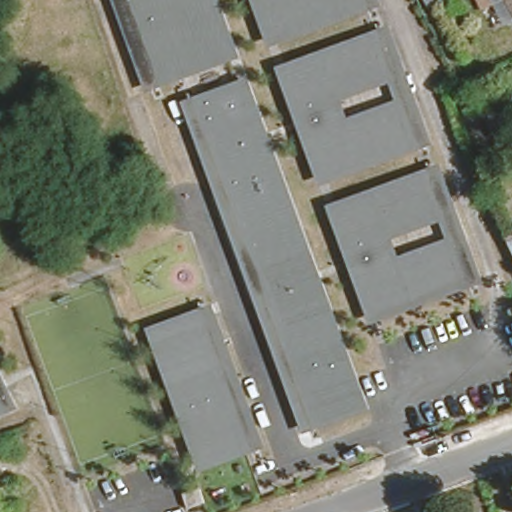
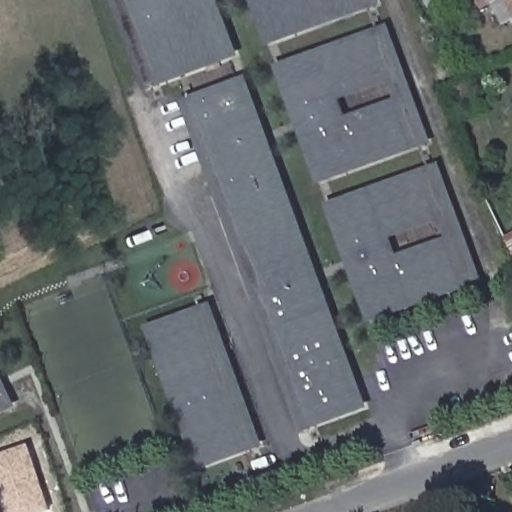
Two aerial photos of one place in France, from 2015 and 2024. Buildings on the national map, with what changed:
unchanged [(215,58),(153,81),(121,0),(211,0),(231,51),(215,58)]
unchanged [(377,0),(378,3),(377,4),(282,40),(267,0),(377,0)]
unchanged [(501,23),(493,7),(483,12),(476,0),(512,0),(512,17),(501,23)]
unchanged [(295,72),(390,36),(431,143),(335,179),(295,72)]
unchanged [(189,108),(222,95),(238,89),(292,229),(277,235),(242,247),(189,108)]
unchanged [(352,221),(343,196),(438,160),(451,195),(478,266),(383,302),(352,221)]
unchanged [(277,235),(292,229),(300,249),(311,280),(262,297),(249,263),(242,247),(277,235)]
unchanged [(512,229),(512,253),(503,234),(512,229)]
unchanged [(311,280),(359,405),(310,422),(262,297),(311,280)]
unchanged [(204,317),(249,442),(201,458),(158,333),(204,317)]
unchanged [(0,387),(8,405),(0,409),(0,387)]
new [(0,496),(0,454),(30,445),(51,512),(50,512),(5,512),(0,496)]
unchanged [(205,481),(209,496),(192,501),(188,486),(205,481)]

